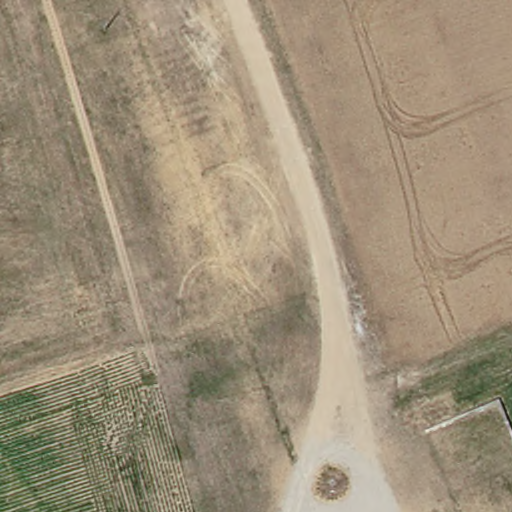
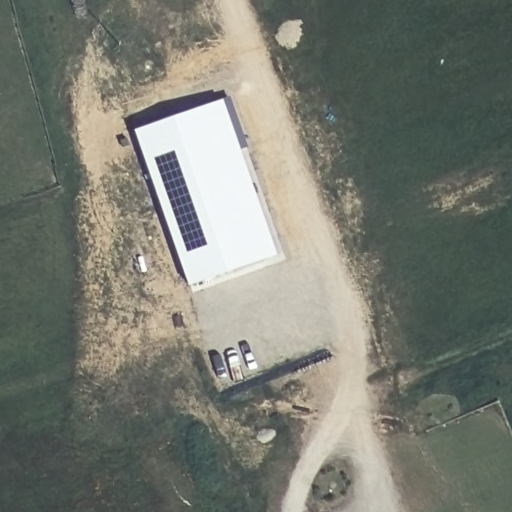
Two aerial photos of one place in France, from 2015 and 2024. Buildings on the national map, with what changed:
new [(224,100),(278,256),(189,287),(135,131),(174,117),(224,100)]

